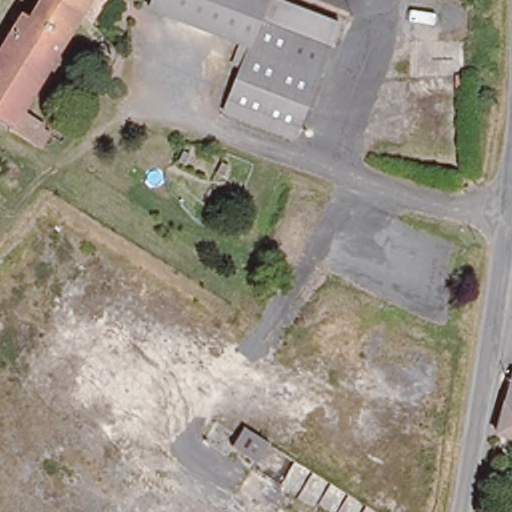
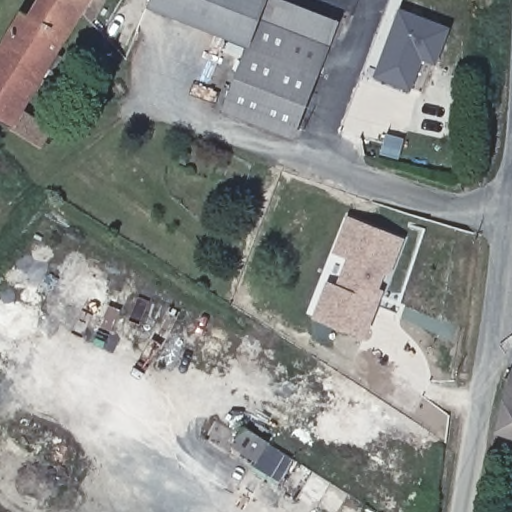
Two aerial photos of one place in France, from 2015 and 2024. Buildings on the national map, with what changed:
unchanged [(40,123),(37,130),(47,137),(37,151),(0,126),(0,48),(22,13),(32,18),(42,0),(54,0),(82,15),(22,111),(40,123)]
unchanged [(91,0),(82,15),(54,0),(91,0)]
unchanged [(151,0),(267,0),(249,48),(147,11),(151,0)]
unchanged [(284,0),(341,21),(296,136),(226,111),(242,66),(233,63),(238,50),(247,54),(249,48),(267,0),(284,0)]
new [(372,76),(398,8),(451,27),(434,62),(422,61),(408,89),(372,76)]
new [(345,258),(331,253),(346,215),(405,238),(390,277),(386,276),(381,289),(385,291),(366,337),(312,316),(326,280),(335,284),(345,258)]
unchanged [(512,389),(512,435),(497,431),(512,389)]
new [(276,485),(251,469),(256,461),(231,445),(243,427),(293,459),(276,485)]

